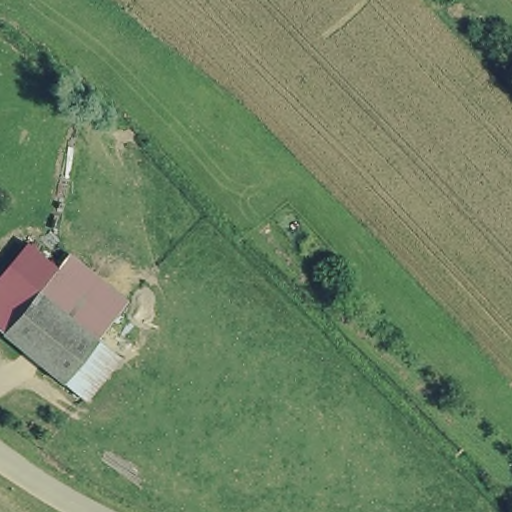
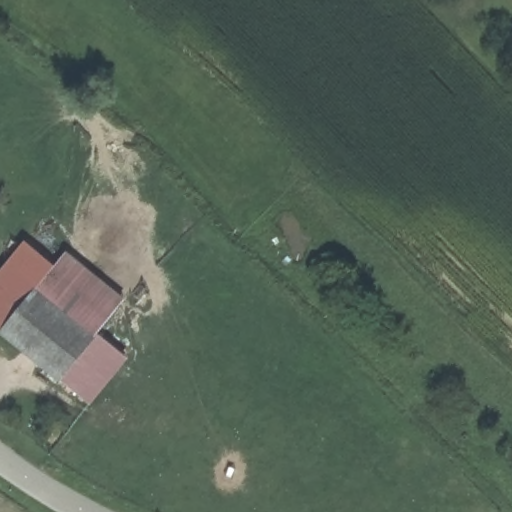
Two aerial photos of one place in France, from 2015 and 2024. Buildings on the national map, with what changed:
unchanged [(95,336),(120,360),(83,403),(0,329),(0,291),(17,271),(39,289),(72,256),(125,302),(95,336)]

